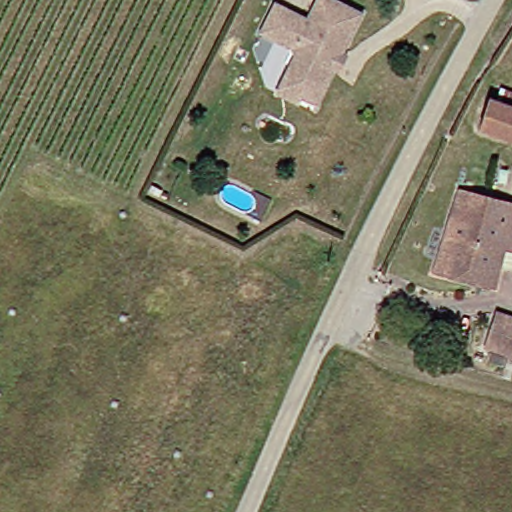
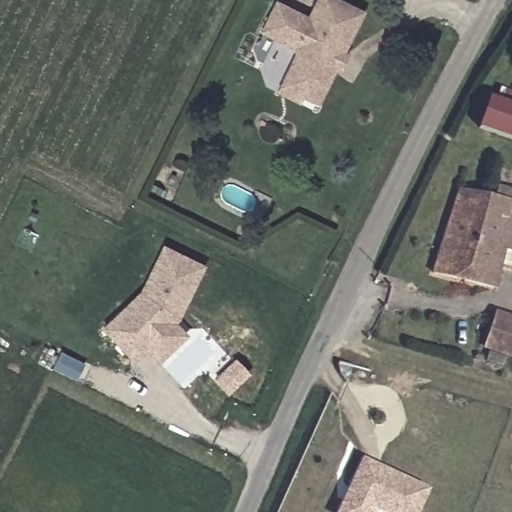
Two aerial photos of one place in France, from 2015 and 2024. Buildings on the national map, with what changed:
unchanged [(282,79),(295,53),(249,29),(264,0),(265,0),(300,18),(308,0),(333,0),(360,13),(340,52),(347,55),(340,70),(333,66),(314,105),(308,102),(292,93),(278,86),(282,79)]
unchanged [(475,121),(487,92),(512,102),(512,136),(475,121)]
unchanged [(493,249),(483,286),(427,268),(451,187),(512,206),(512,255),(493,249)]
new [(141,293),(165,248),(202,267),(178,314),(191,327),(160,358),(147,346),(135,358),(105,329),(118,317),(141,293)]
unchanged [(473,345),(486,309),(512,319),(512,359),(473,345)]
new [(421,512),(379,512),(378,511),(377,512),(334,512),(362,456),(432,487),(421,512)]

